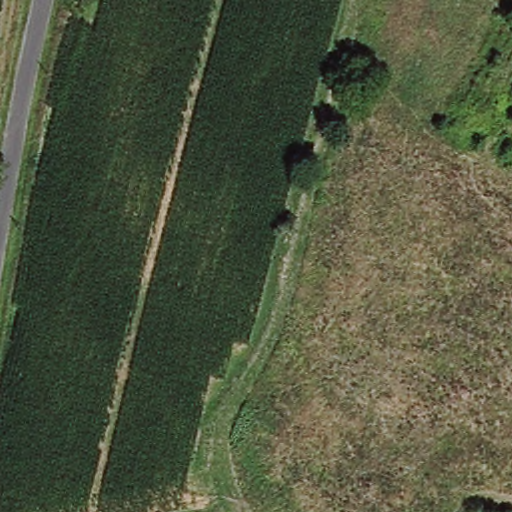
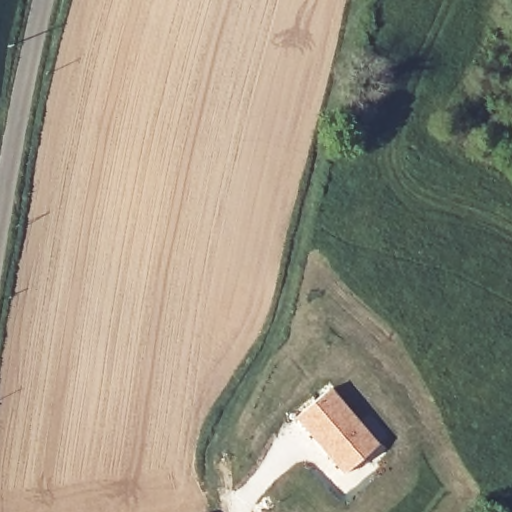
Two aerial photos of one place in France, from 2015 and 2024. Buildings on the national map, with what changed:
new [(331,387),(378,444),(345,474),(295,419),(331,387)]

